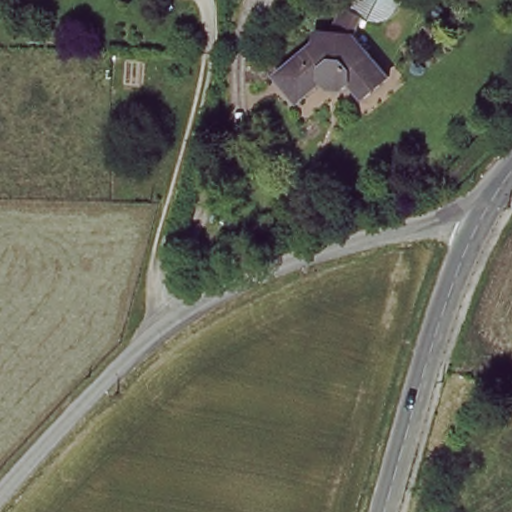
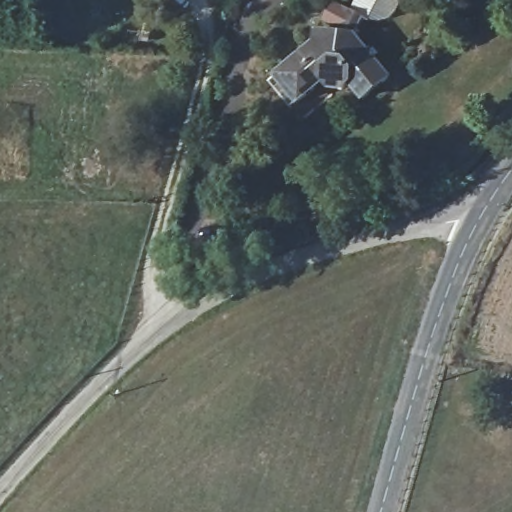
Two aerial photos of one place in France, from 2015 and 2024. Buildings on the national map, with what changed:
unchanged [(363,92),(349,75),(341,82),(331,81),(323,74),(298,95),(276,70),(316,36),(318,25),(331,27),(346,0),(353,3),(355,0),(401,0),(399,5),(390,15),(380,19),(370,13),(369,15),(365,12),(356,30),(365,41),(388,70),(363,92)]

